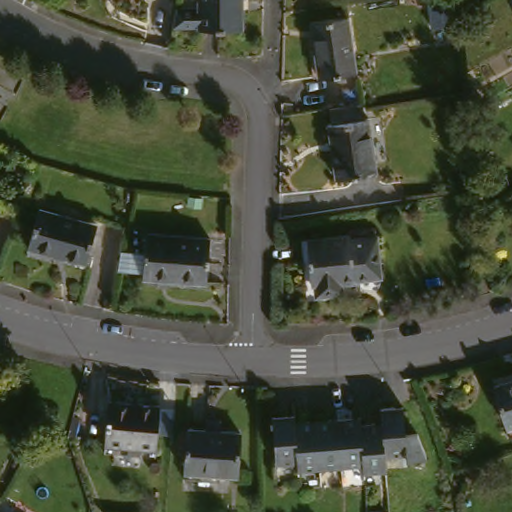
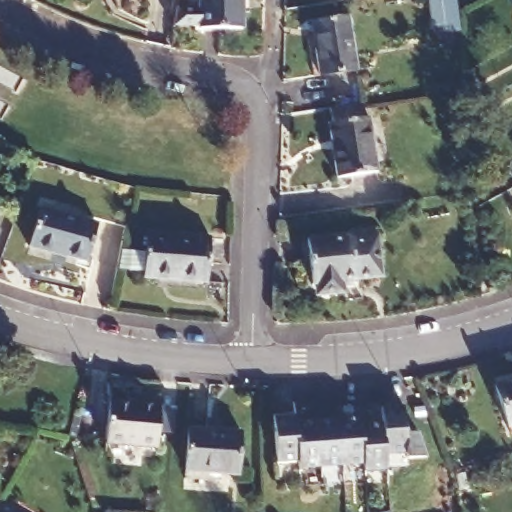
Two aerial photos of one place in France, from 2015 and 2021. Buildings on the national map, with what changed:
unchanged [(203,31),(203,29),(175,30),(176,17),(178,9),(203,8),(203,0),(244,0),(245,31),(203,31)]
unchanged [(446,32),(445,24),(433,27),(428,0),(454,0),(458,30),(446,32)]
unchanged [(350,18),(359,72),(322,77),(314,23),(350,18)]
unchanged [(365,102),(368,121),(372,120),(380,172),(339,178),(333,137),(330,126),(335,125),(332,107),(365,102)]
unchanged [(95,221),(82,266),(25,247),(27,242),(33,224),(40,204),(95,221)]
unchanged [(147,233),(210,239),(205,283),(142,277),(143,272),(115,269),(119,252),(119,248),(145,252),(147,233)]
unchanged [(344,237),(345,239),(371,237),(373,278),(336,281),(337,293),(313,295),(313,283),(305,284),(302,240),(344,237)]
unchanged [(512,379),(512,423),(505,425),(490,385),(512,379)]
unchanged [(160,407),(157,451),(106,447),(110,404),(160,407)]
unchanged [(295,417),(296,423),(340,420),(357,419),(359,427),(376,426),(375,411),(402,409),(406,433),(420,432),(427,455),(404,458),(402,454),(383,456),(384,471),(361,473),(360,466),(343,468),(300,471),(300,465),(277,466),(275,418),(295,417)]
unchanged [(235,429),(233,472),(182,469),(185,426),(235,429)]

